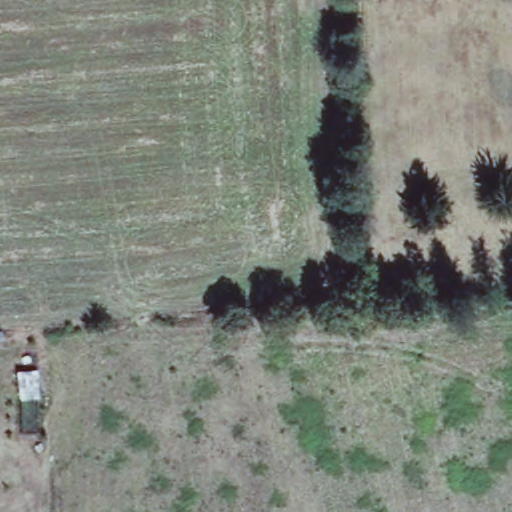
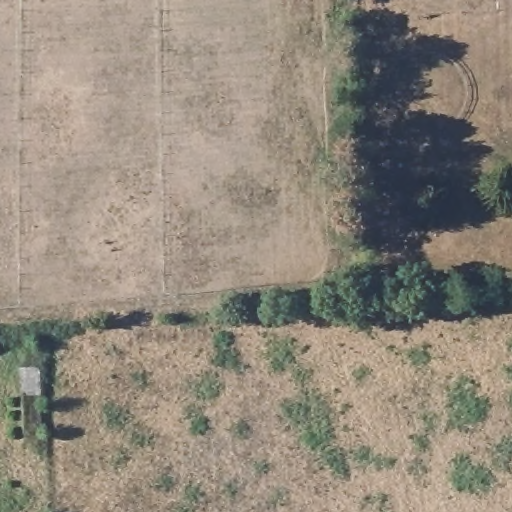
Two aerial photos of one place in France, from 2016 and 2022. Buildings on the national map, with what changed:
[]

